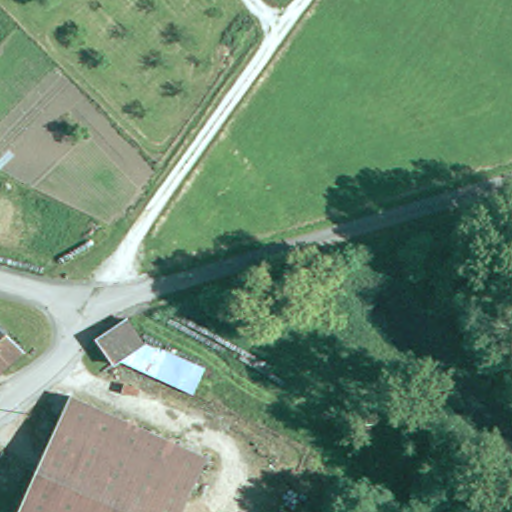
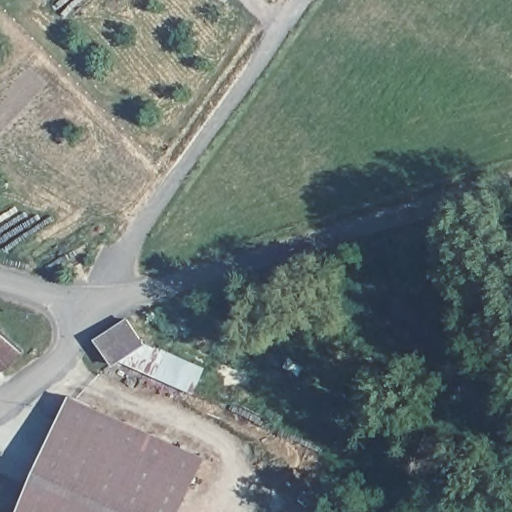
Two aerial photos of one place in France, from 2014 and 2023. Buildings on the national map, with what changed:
unchanged [(116,360),(110,364),(92,339),(112,325),(122,319),(129,330),(139,344),(116,360)]
unchanged [(0,365),(0,325),(22,346),(0,365)]
unchanged [(199,371),(188,394),(116,360),(139,344),(199,371)]
unchanged [(182,443),(213,457),(188,512),(23,512),(75,395),(182,443)]

